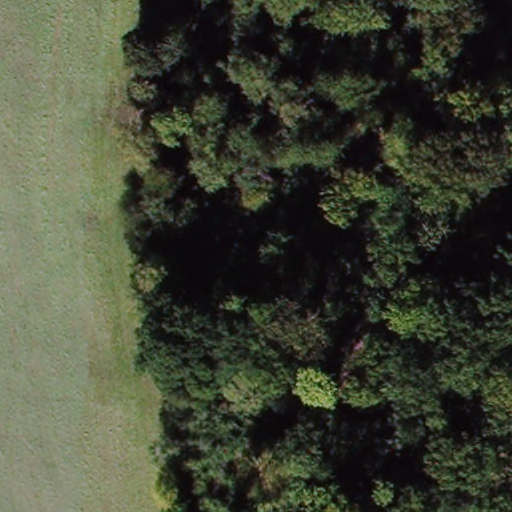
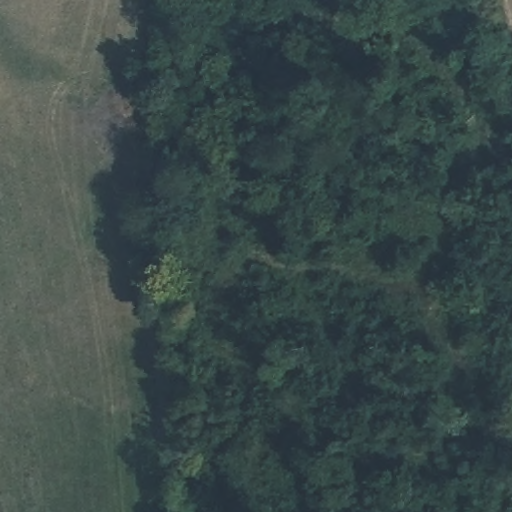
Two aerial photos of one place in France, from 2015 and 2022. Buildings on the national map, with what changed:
[]

